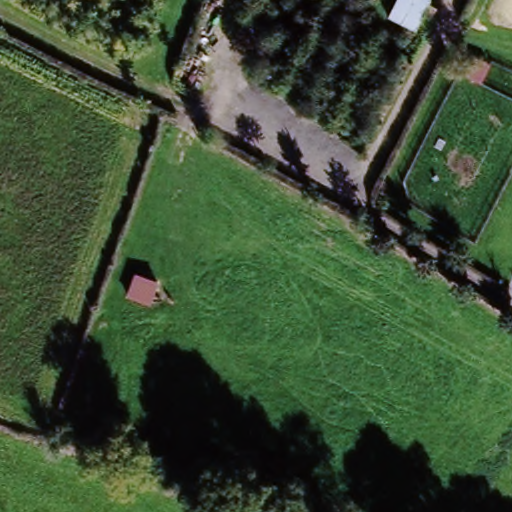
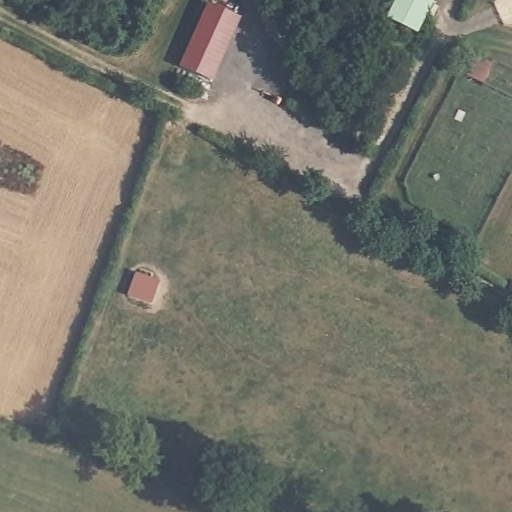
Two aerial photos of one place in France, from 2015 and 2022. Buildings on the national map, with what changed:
unchanged [(435,7),(429,18),(424,17),(415,34),(386,17),(395,0),(432,0),(430,5),(435,7)]
new [(238,19),(211,82),(177,68),(207,4),(238,19)]

